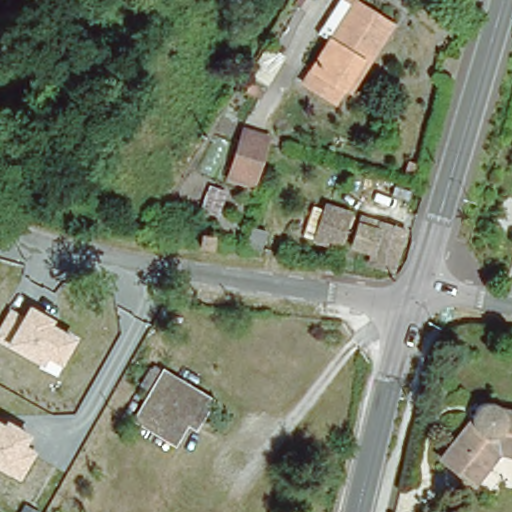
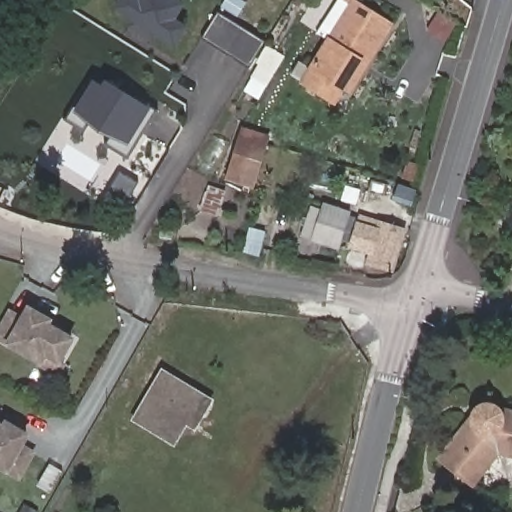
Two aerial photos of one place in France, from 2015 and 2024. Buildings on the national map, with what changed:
new [(175,47),(160,38),(154,44),(127,27),(131,20),(114,10),(120,0),(176,0),(184,5),(177,18),(188,25),(175,47)]
unchanged [(367,61),(361,57),(341,87),(343,89),(337,100),(306,80),(355,1),(391,24),(367,61)]
new [(202,37),(218,14),(263,41),(249,66),(202,37)]
unchanged [(260,101),(245,94),(252,80),(251,79),(257,67),(256,65),(265,45),(285,56),(260,101)]
new [(157,110),(129,158),(107,145),(113,139),(91,125),(85,131),(68,120),(92,79),(102,84),(105,79),(135,99),(136,96),(157,110)]
unchanged [(255,188),(227,181),(241,129),(268,137),(255,188)]
new [(118,172),(132,181),(116,206),(102,197),(118,172)]
unchanged [(199,211),(209,185),(226,190),(217,217),(199,211)]
unchanged [(327,202),(350,211),(338,245),(316,237),(327,202)]
unchanged [(393,267),(369,261),(372,251),(352,245),(360,220),(379,227),(381,220),(406,229),(393,267)]
unchanged [(197,238),(209,240),(207,251),(195,250),(197,238)]
unchanged [(56,377),(37,366),(40,363),(13,348),(11,350),(0,344),(0,327),(11,310),(22,316),(31,305),(57,319),(54,323),(78,337),(56,377)]
unchanged [(192,420),(182,415),(171,435),(132,413),(161,366),(207,393),(192,420)]
unchanged [(471,421),(472,420),(472,418),(473,416),(474,415),(476,414),(477,412),(478,411),(480,410),(482,410),(483,410),(485,409),(487,409),(489,409),(491,410),(492,410),(494,410),(496,411),(497,412),(498,414),(512,417),(512,458),(500,455),(474,486),(440,461),(471,423),(471,421)]
unchanged [(24,445),(37,453),(18,480),(0,470),(0,421),(2,422),(5,418),(31,433),(24,445)]

